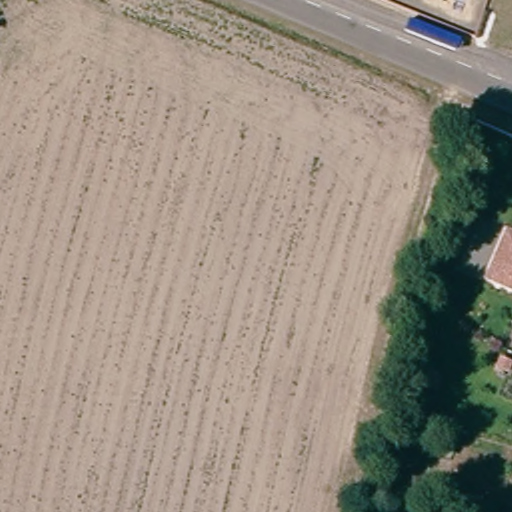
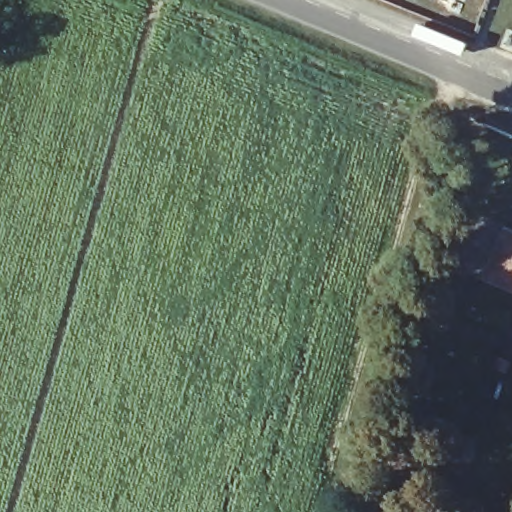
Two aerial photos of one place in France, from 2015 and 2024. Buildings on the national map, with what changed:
unchanged [(491,278),(511,234),(512,234),(512,288),(491,278)]

